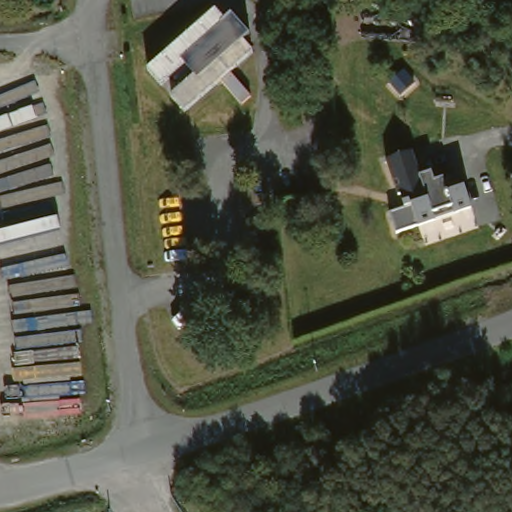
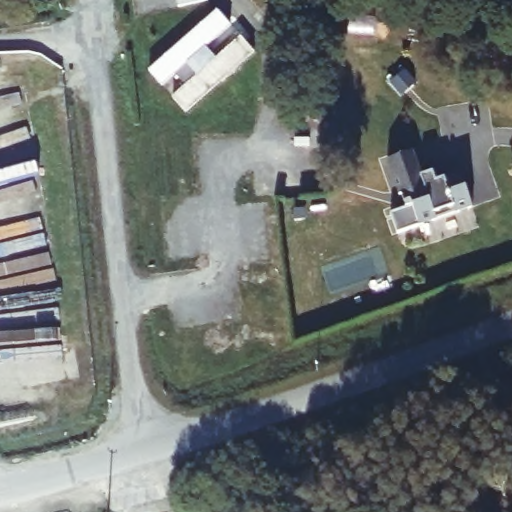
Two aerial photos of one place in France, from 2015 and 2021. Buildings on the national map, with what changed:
unchanged [(216,64),(240,42),(254,58),(184,118),(171,103),(184,91),(174,79),(160,91),(147,75),(216,15),(230,30),(205,51),(216,64)]
unchanged [(475,213),(421,231),(401,238),(395,219),(415,212),(410,198),(398,202),(385,164),(411,155),(420,179),(432,175),(435,184),(462,175),(475,213)]

